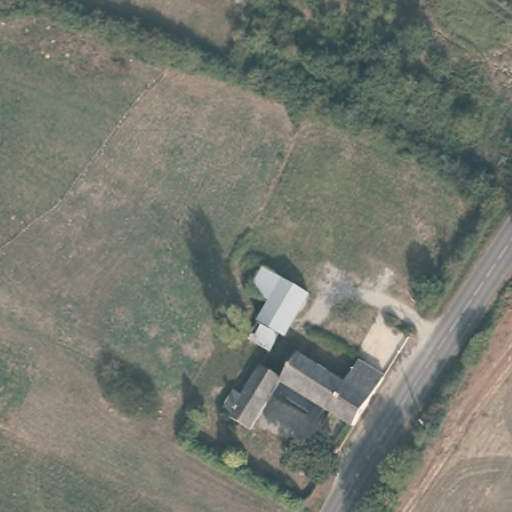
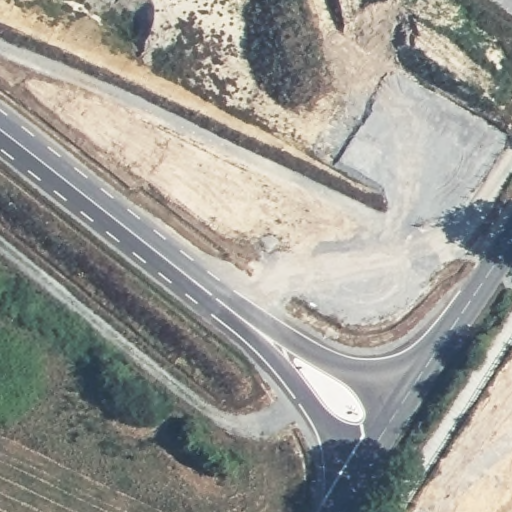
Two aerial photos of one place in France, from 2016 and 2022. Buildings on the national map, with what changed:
demolished [(269,300),(245,285),(260,265),(312,295),(272,353),(247,339),(269,300)]
demolished [(282,380),(251,423),(230,409),(232,405),(225,398),(231,389),(235,390),(245,375),(253,378),(266,360),(285,372),(299,354),(343,382),(349,386),(359,372),(380,385),(379,386),(354,428),(282,380)]

